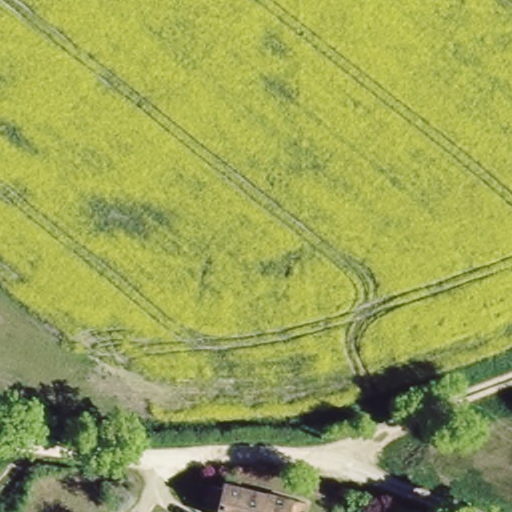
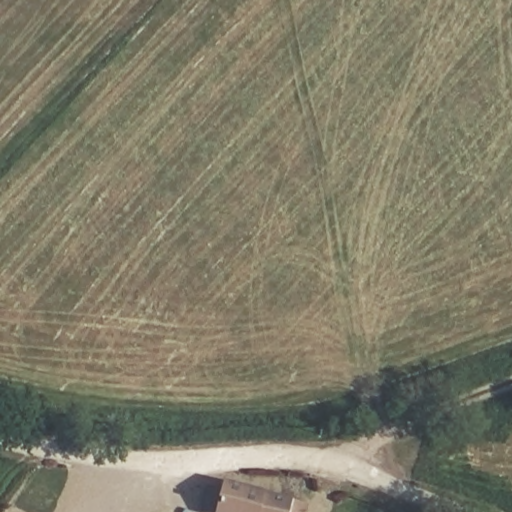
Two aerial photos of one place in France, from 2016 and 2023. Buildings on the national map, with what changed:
unchanged [(307,498),(303,512),(198,512),(205,481),(307,498)]

